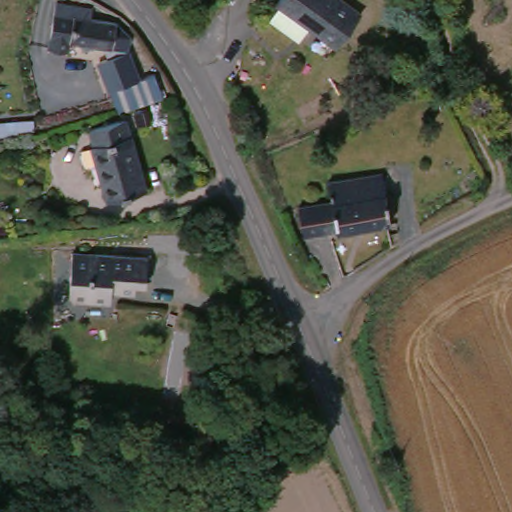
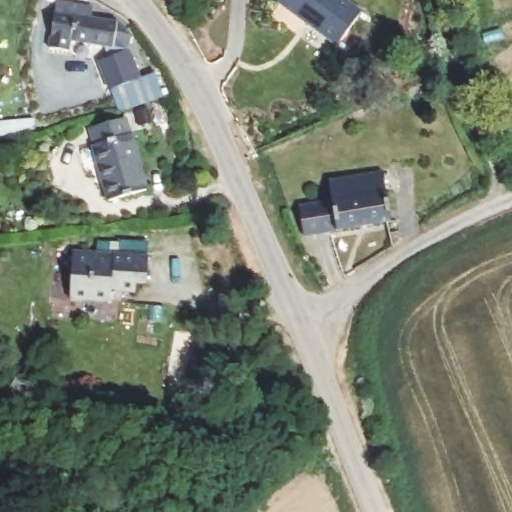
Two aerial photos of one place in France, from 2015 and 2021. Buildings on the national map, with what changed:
unchanged [(335,55),(276,11),(286,0),(330,0),(360,21),(335,55)]
unchanged [(84,12),(85,26),(117,25),(128,33),(127,48),(69,48),(68,63),(46,63),(47,33),(48,12),(84,12)]
unchanged [(152,78),(161,104),(115,119),(107,94),(152,78)]
unchanged [(89,151),(93,150),(88,135),(123,122),(149,192),(109,206),(89,151)]
unchanged [(330,214),(325,188),(382,178),(389,229),(304,246),(300,220),(330,214)]
unchanged [(130,291),(129,302),(111,302),(110,316),(66,314),(70,262),(144,263),(142,291),(130,291)]

